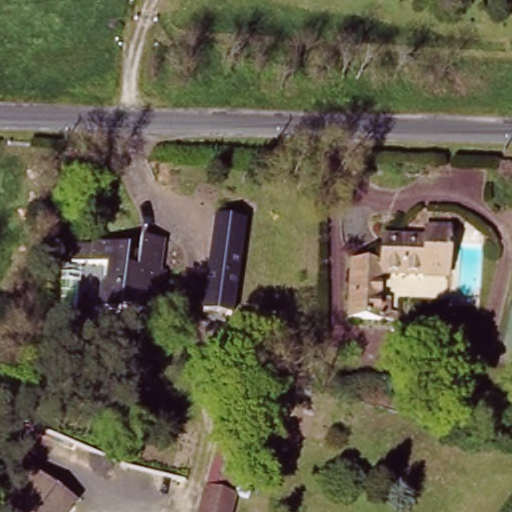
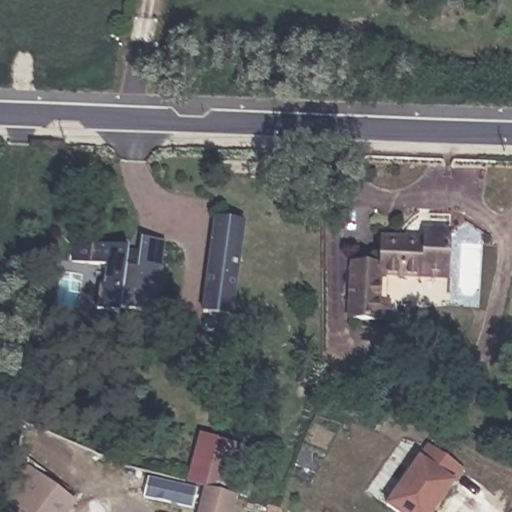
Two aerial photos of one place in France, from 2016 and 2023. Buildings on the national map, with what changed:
unchanged [(216,216),(243,219),(229,311),(202,307),(216,216)]
unchanged [(375,291),(385,292),(384,308),(392,308),(392,316),(347,315),(350,255),(375,256),(375,232),(418,234),(418,224),(443,225),(442,263),(442,276),(417,275),(375,273),(375,291)]
unchanged [(125,239),(125,247),(139,247),(139,232),(162,232),(159,263),(164,263),(162,287),(155,287),(153,302),(118,301),(118,305),(97,303),(98,282),(105,282),(105,261),(87,260),(89,237),(125,239)]
new [(427,448),(462,472),(434,512),(391,512),(385,508),(427,448)]
unchanged [(67,512),(6,512),(15,453),(75,502),(67,512)]
unchanged [(200,480),(235,488),(229,512),(192,512),(200,480)]

